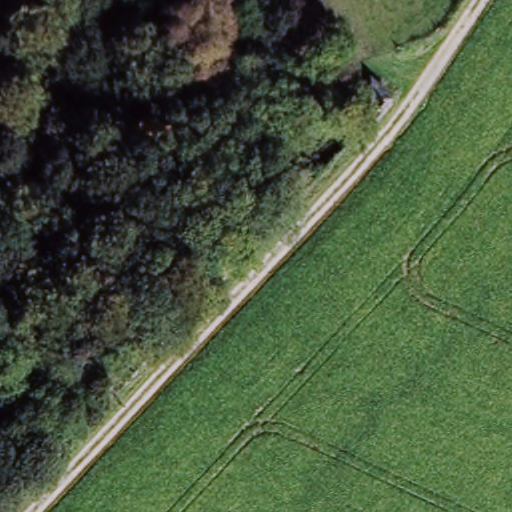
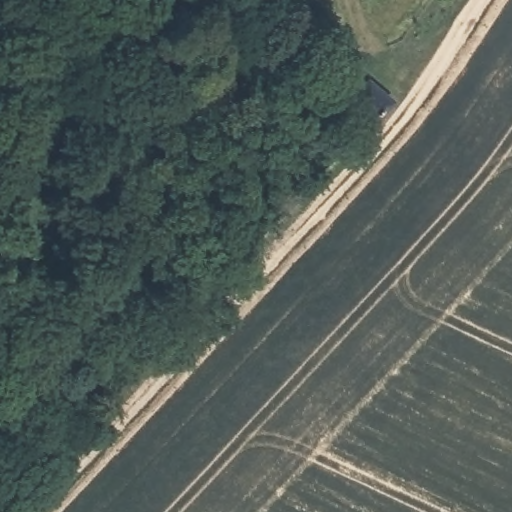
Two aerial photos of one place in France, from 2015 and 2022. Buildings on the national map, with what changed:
unchanged [(359,85),(386,107),(389,109),(371,132),(363,127),(341,109),(353,93),(359,85)]

